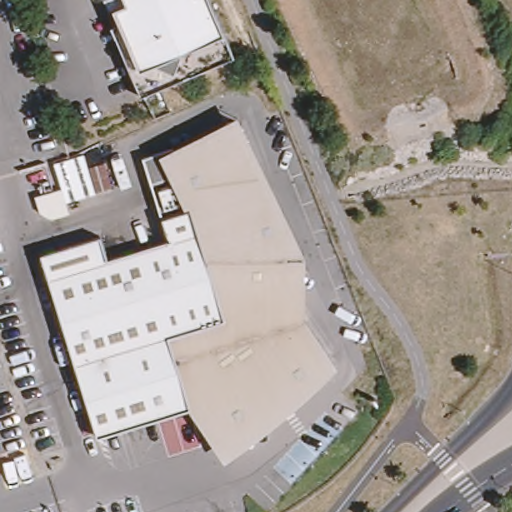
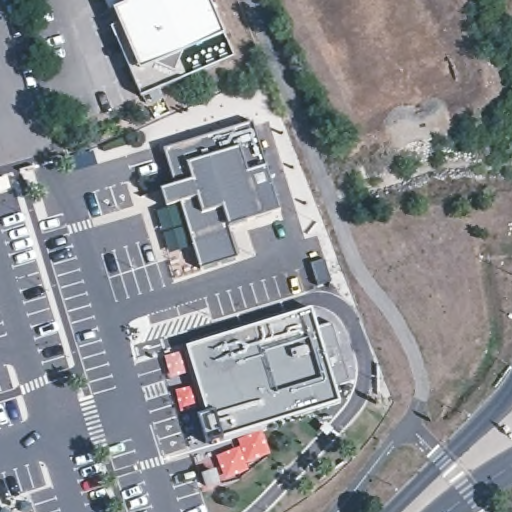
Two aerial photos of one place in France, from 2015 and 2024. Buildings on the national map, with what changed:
unchanged [(120,24),(115,9),(130,4),(128,0),(211,0),(231,48),(235,57),(141,95),(130,67),(112,27),(120,24)]
demolished [(140,161),(155,157),(210,131),(237,117),(305,264),(287,264),(210,267),(194,211),(162,221),(140,161)]
new [(160,190),(175,186),(165,149),(250,121),(280,211),(232,226),(228,230),(237,257),(201,268),(182,203),(165,207),(160,190)]
demolished [(71,214),(52,219),(42,213),(37,197),(63,189),(71,214)]
demolished [(287,264),(288,332),(307,325),(310,330),(334,369),(288,400),(223,443),(201,408),(190,411),(97,440),(66,332),(43,258),(101,240),(107,262),(168,243),(162,221),(194,211),(210,267),(287,264)]
new [(200,416),(205,414),(187,347),(312,310),(318,330),(332,326),(348,380),(335,384),(340,403),(209,444),(200,416)]

